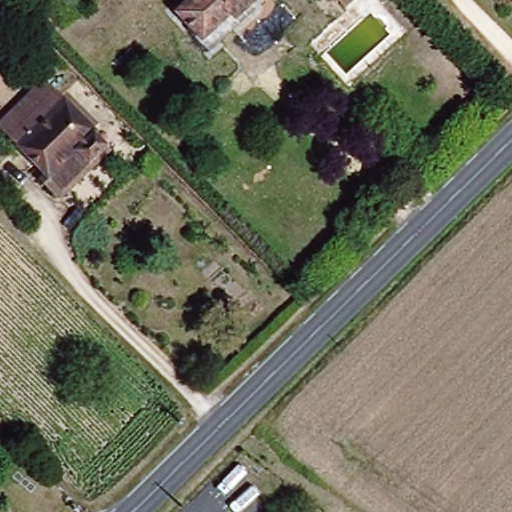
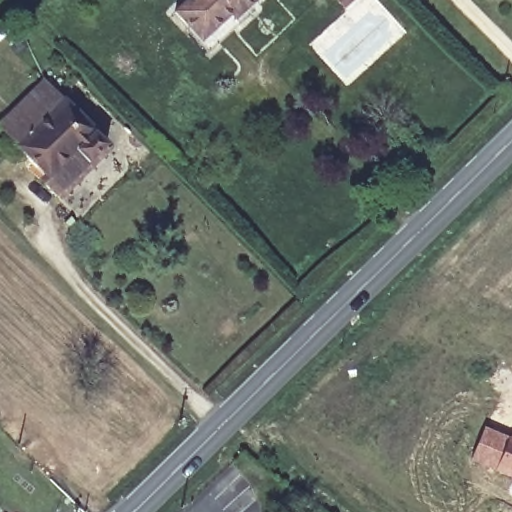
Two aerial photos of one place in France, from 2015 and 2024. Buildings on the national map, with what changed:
unchanged [(238,20),(210,46),(174,7),(182,0),(250,0),(233,15),(238,20)]
unchanged [(335,0),(350,0),(342,7),(335,0)]
unchanged [(86,157),(95,165),(62,200),(25,164),(32,155),(0,126),(0,120),(45,71),(111,137),(86,157)]
new [(511,437),(512,435),(512,477),(469,459),(484,425),(511,437)]

